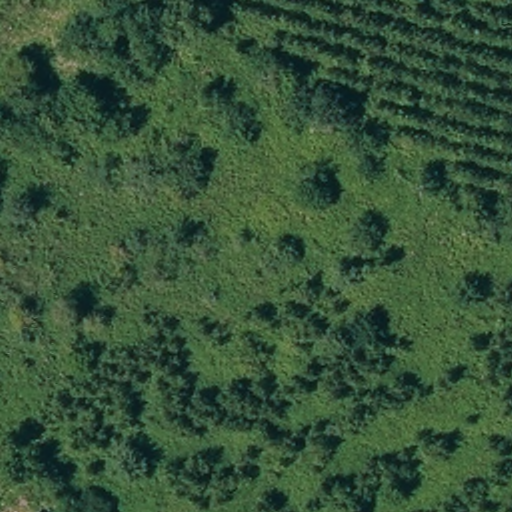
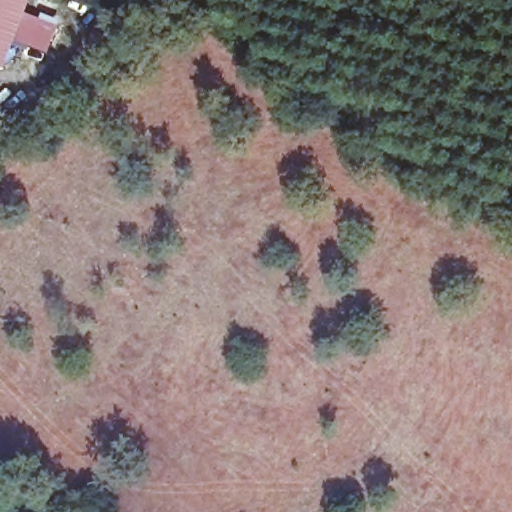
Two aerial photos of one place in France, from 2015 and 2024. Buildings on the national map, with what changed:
new [(60,23),(49,50),(16,39),(5,66),(0,65),(0,0),(29,0),(26,10),(60,23)]

